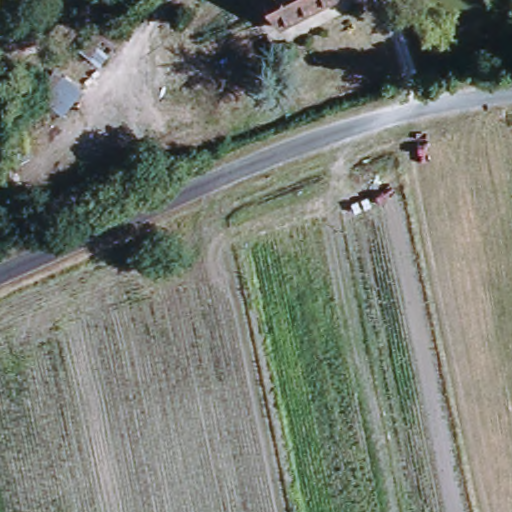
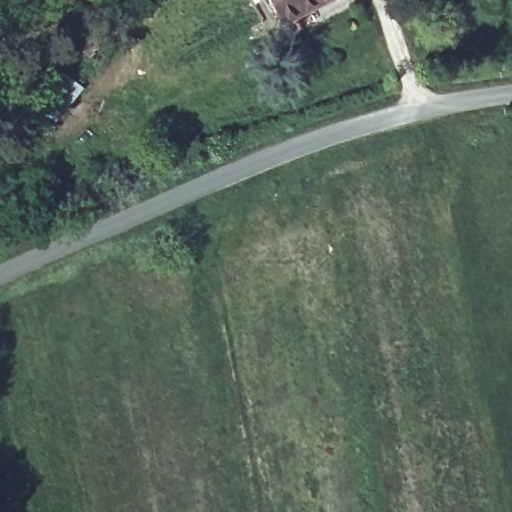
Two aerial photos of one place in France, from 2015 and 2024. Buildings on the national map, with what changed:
unchanged [(263,0),(325,0),(275,25),(263,0)]

